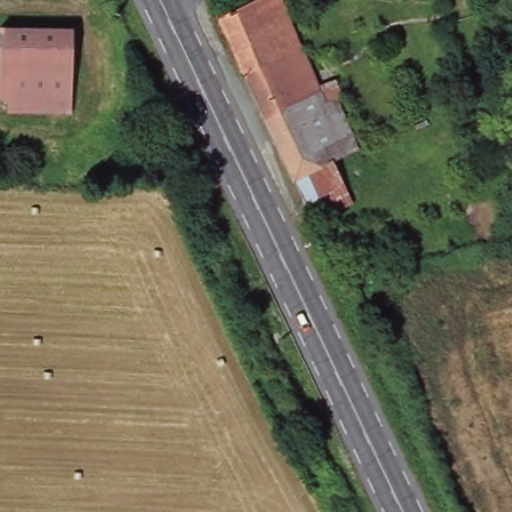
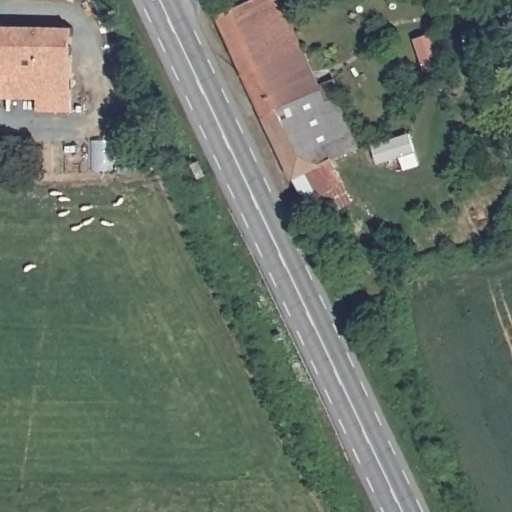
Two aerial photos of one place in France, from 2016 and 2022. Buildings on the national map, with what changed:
unchanged [(221,11),(246,0),(300,0),(291,4),(307,42),(248,67),(221,11)]
unchanged [(7,106),(7,93),(0,93),(0,22),(72,22),(70,107),(7,106)]
unchanged [(248,67),(307,42),(331,99),(342,94),(362,143),(336,156),(298,175),(248,67)]
unchanged [(336,156),(357,197),(318,216),(298,175),(336,156)]

